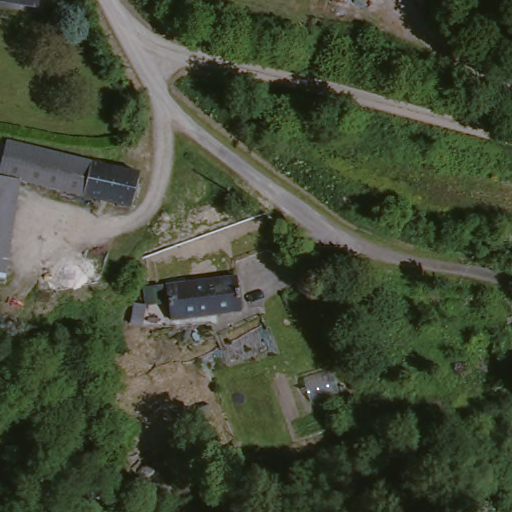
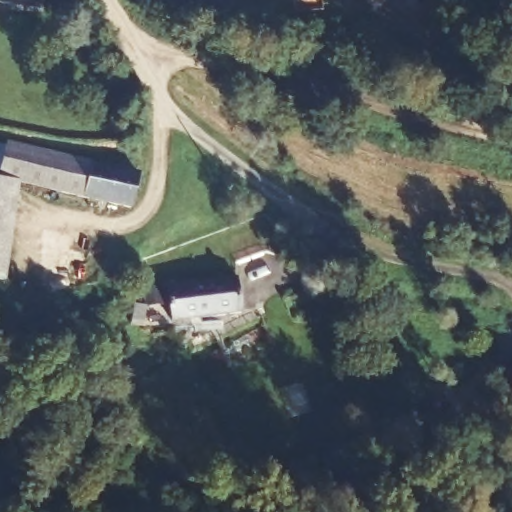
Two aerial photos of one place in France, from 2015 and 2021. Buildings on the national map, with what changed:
unchanged [(0,4),(0,0),(40,0),(39,9),(0,4)]
unchanged [(0,174),(0,141),(6,143),(7,135),(120,164),(122,153),(139,157),(138,168),(130,203),(17,178),(0,174)]
unchanged [(0,276),(0,174),(17,178),(6,277),(0,276)]
unchanged [(235,279),(241,314),(170,322),(165,287),(235,279)]
unchanged [(135,304),(152,309),(142,330),(130,329),(135,304)]

